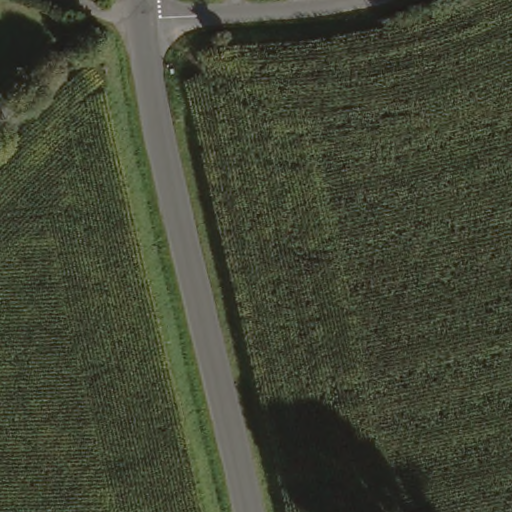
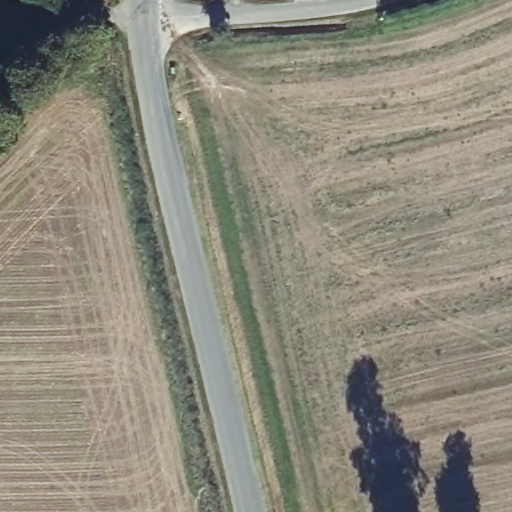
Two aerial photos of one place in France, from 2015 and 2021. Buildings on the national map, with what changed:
[]

